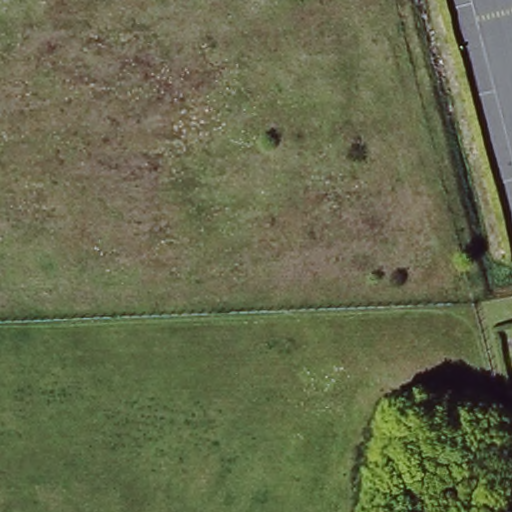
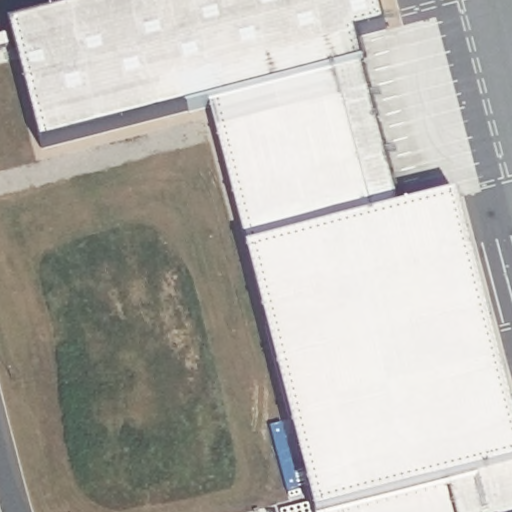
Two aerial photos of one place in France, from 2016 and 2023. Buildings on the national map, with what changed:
new [(316,512),(247,255),(252,253),(211,105),(42,147),(11,28),(119,0),(379,0),(387,28),(355,37),(362,65),(402,213),(458,199),(512,403),(512,512),(316,512)]

